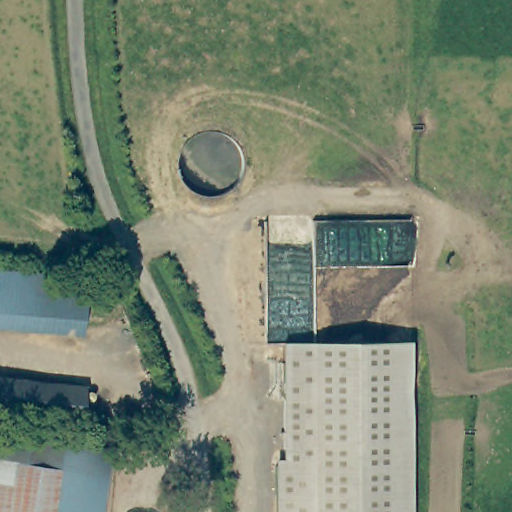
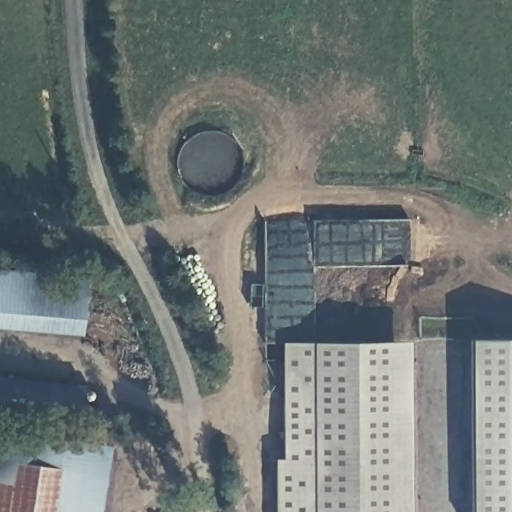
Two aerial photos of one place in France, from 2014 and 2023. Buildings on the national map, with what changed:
unchanged [(80,335),(0,326),(0,268),(87,278),(80,335)]
new [(512,336),(512,512),(471,512),(467,336),(512,336)]
unchanged [(282,458),(282,341),(408,339),(411,512),(276,512),(275,457),(282,458)]
unchanged [(83,413),(0,402),(0,365),(88,377),(83,413)]
unchanged [(94,512),(0,512),(0,430),(104,446),(94,512)]

